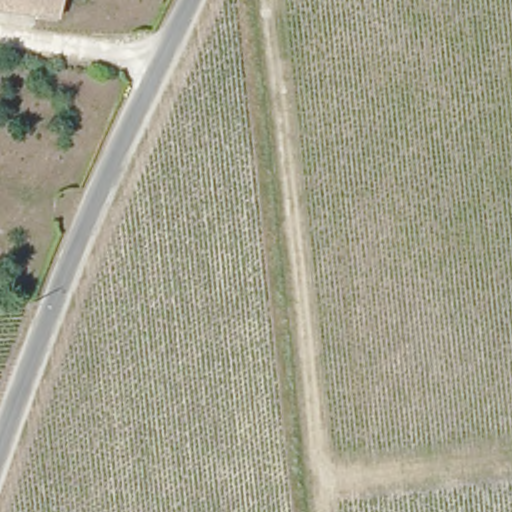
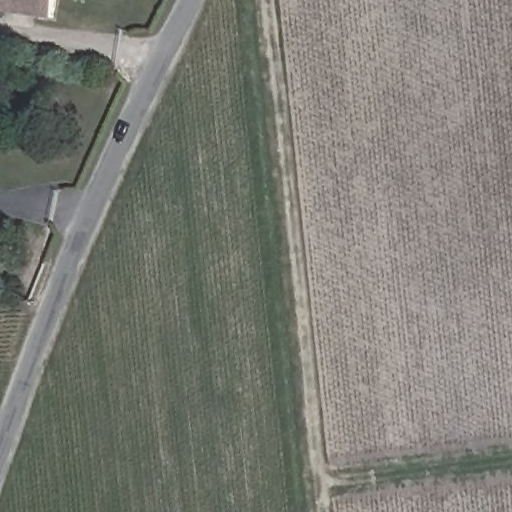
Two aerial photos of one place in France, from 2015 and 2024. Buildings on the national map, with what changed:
unchanged [(56,16),(0,9),(0,0),(58,0),(56,16)]

